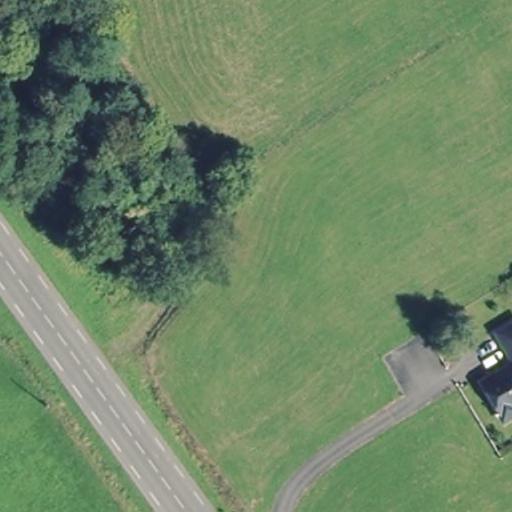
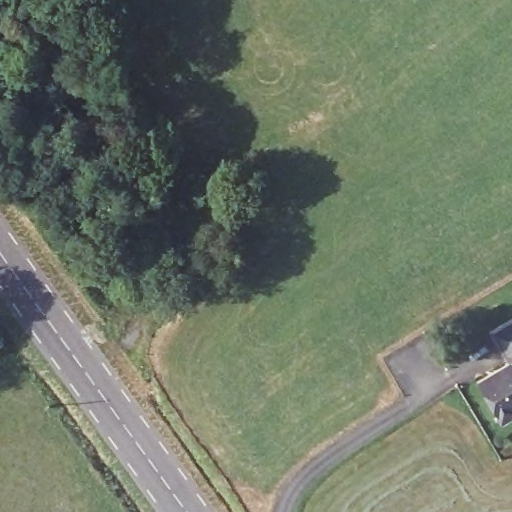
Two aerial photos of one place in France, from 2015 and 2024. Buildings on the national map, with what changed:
unchanged [(512,259),(512,265),(509,261),(512,259)]
unchanged [(512,318),(512,413),(496,422),(473,385),(507,367),(486,331),(510,316),(512,318)]

